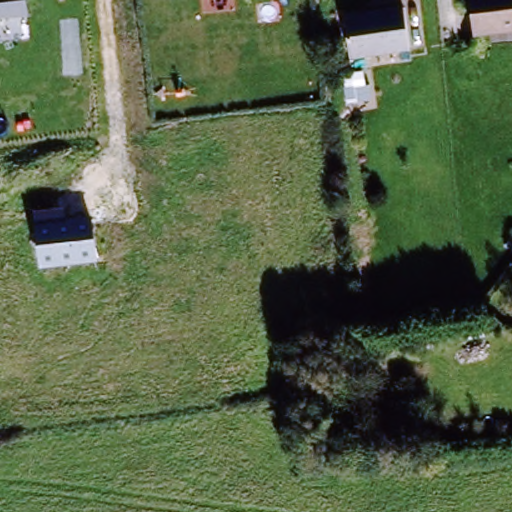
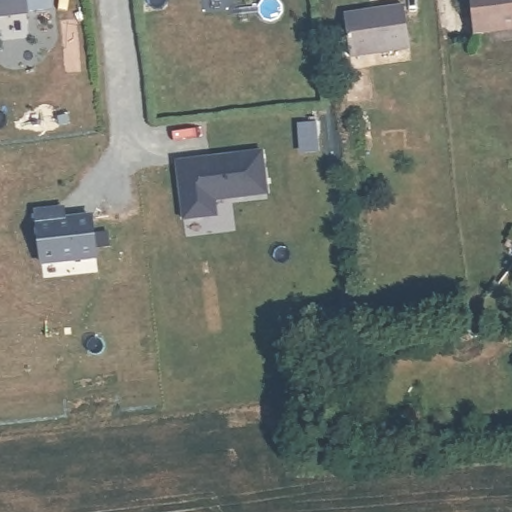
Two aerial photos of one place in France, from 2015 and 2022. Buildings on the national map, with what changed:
unchanged [(0,19),(0,0),(27,0),(29,15),(0,19)]
unchanged [(472,0),(512,0),(512,31),(477,36),(472,0)]
unchanged [(399,8),(405,50),(345,60),(338,18),(399,8)]
new [(262,150),(270,195),(217,202),(221,216),(184,220),(177,161),(262,150)]
unchanged [(94,215),(97,258),(39,262),(36,221),(94,215)]

